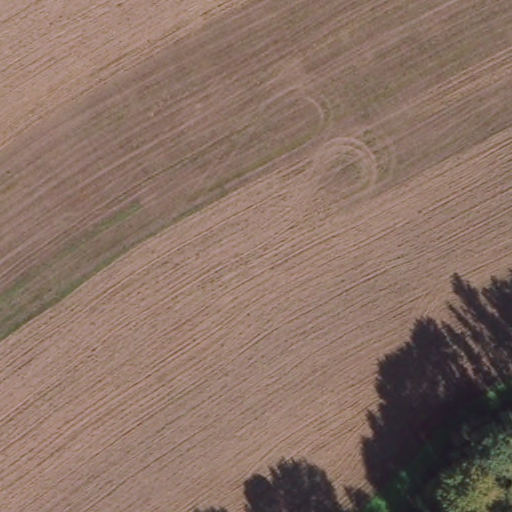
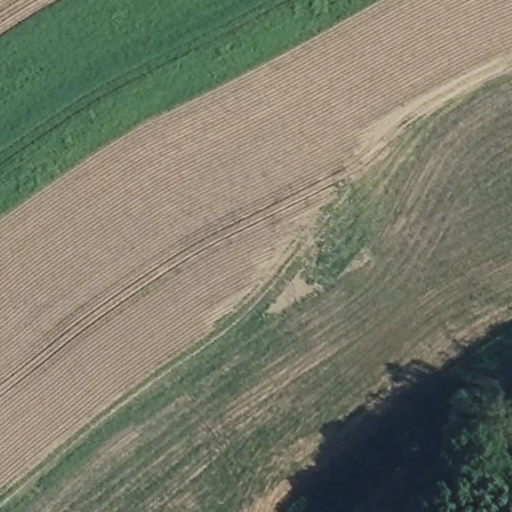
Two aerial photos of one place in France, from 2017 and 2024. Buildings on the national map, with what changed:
unchanged [(511,463),(512,463),(512,473),(494,490),(488,481),(504,465),(511,463)]

